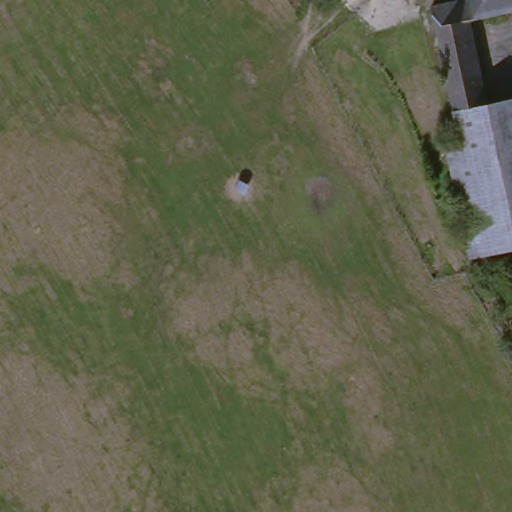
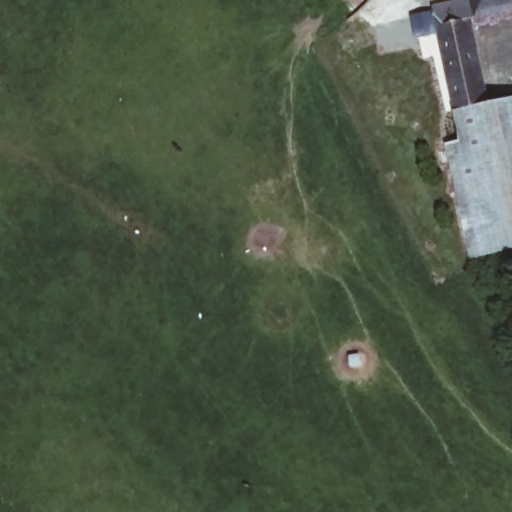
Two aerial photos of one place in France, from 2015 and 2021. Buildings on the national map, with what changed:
unchanged [(449,0),(512,0),(512,8),(471,17),(489,102),(457,110),(433,2),(437,2),(449,0)]
unchanged [(466,159),(457,110),(489,102),(512,98),(512,244),(470,253),(451,163),(466,159)]

